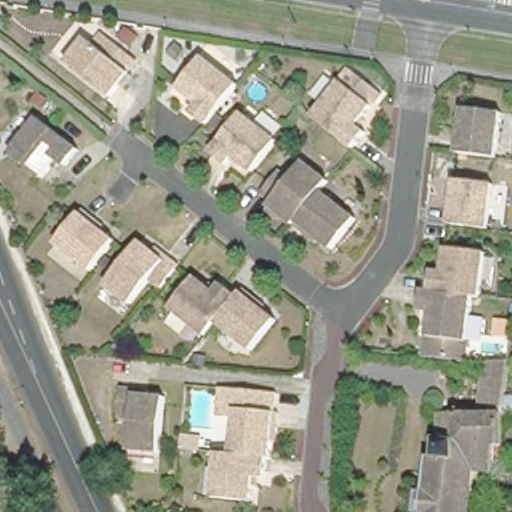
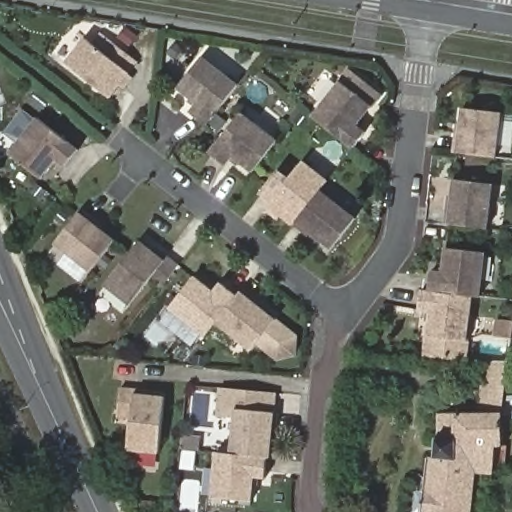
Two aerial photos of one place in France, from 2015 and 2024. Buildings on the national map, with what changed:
unchanged [(104,54),(112,43),(135,61),(127,71),(130,74),(110,99),(67,64),(86,39),(104,54)]
unchanged [(219,118),(209,131),(192,119),(200,109),(180,94),(205,63),(240,91),(219,118)]
unchanged [(373,107),(357,126),(367,134),(354,150),(314,118),(342,83),(373,107)]
unchanged [(242,105),(257,118),(251,127),(270,143),(254,162),(245,173),(210,145),(242,105)]
unchanged [(462,109),(502,114),(496,159),(457,154),(462,109)]
unchanged [(40,182),(10,156),(40,122),(78,155),(65,170),(56,163),(40,182)]
unchanged [(259,195),(277,173),(288,182),(302,164),(327,183),(320,191),(308,205),(296,222),(292,227),(267,208),(270,204),(259,195)]
unchanged [(455,180),(493,185),(487,229),(487,230),(449,225),(455,180)]
unchanged [(296,222),(308,205),(344,234),(327,255),(292,227),(296,222)]
unchanged [(114,235),(90,266),(55,238),(79,207),(114,235)]
unchanged [(164,279),(161,283),(149,274),(129,299),(106,280),(141,236),(164,255),(167,251),(179,260),(164,279)]
unchanged [(439,299),(441,279),(452,281),(456,256),(495,261),(490,305),(477,304),(439,299)]
unchanged [(226,307),(215,320),(214,323),(206,333),(170,304),(195,273),(215,289),(222,279),(237,292),(226,307)]
unchanged [(273,320),(249,351),(214,323),(215,320),(226,307),(237,292),(273,320)]
unchanged [(439,299),(477,304),(472,349),(434,344),(437,319),(429,319),(432,299),(439,299)]
new [(297,356),(277,362),(256,342),(273,320),(276,317),(299,335),(297,356)]
unchanged [(503,449),(507,450),(505,469),(496,469),(495,477),(475,474),(472,499),(477,500),(477,508),(472,507),(472,512),(423,512),(425,496),(426,496),(429,461),(436,462),(439,416),(480,417),(488,364),(510,366),(505,401),(512,400),(512,429),(502,429),(503,433),(503,449)]
unchanged [(114,418),(117,389),(132,390),(131,394),(161,398),(156,454),(126,451),(129,419),(114,418)]
unchanged [(237,413),(237,419),(216,419),(217,390),(275,394),(278,415),(237,413)]
unchanged [(217,457),(234,456),(237,419),(237,413),(278,415),(275,447),(271,448),(267,477),(260,477),(256,504),(214,497),(217,457)]

